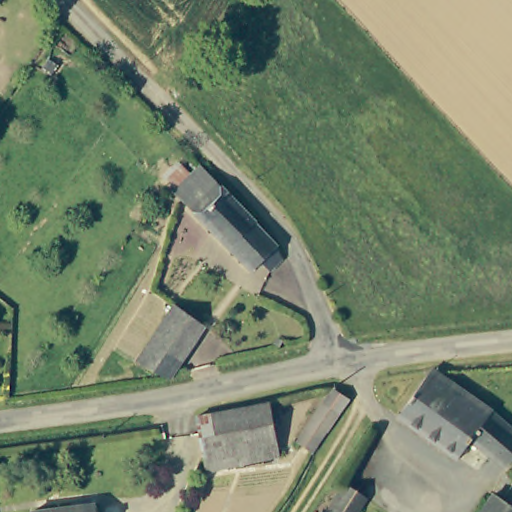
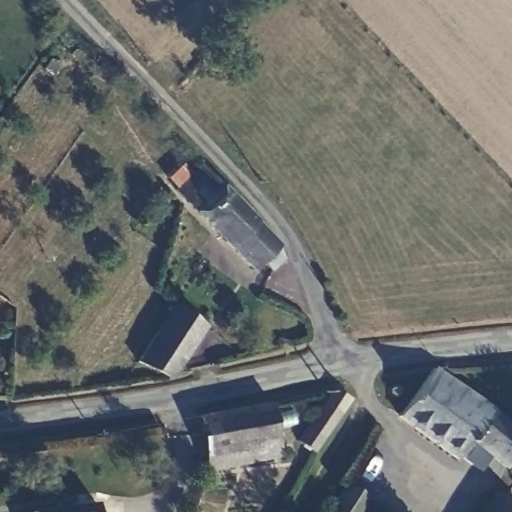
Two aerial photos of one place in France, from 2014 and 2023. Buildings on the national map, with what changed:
unchanged [(256,257),(250,251),(239,259),(175,199),(170,193),(190,169),(194,165),(215,183),(266,236),(270,244),(256,257)]
unchanged [(135,366),(172,308),(200,326),(165,379),(156,380),(135,366)]
unchanged [(512,428),(512,459),(503,473),(463,441),(451,457),(391,415),(407,393),(430,365),(512,428)]
unchanged [(290,440),(325,388),(342,399),(307,453),(290,440)]
unchanged [(196,414),(270,404),(277,460),(202,472),(196,414)]
unchanged [(342,484),(365,498),(357,512),(324,512),(342,484)]
unchanged [(490,488),(512,504),(512,512),(475,512),(490,488)]
unchanged [(89,512),(31,512),(87,504),(89,512)]

